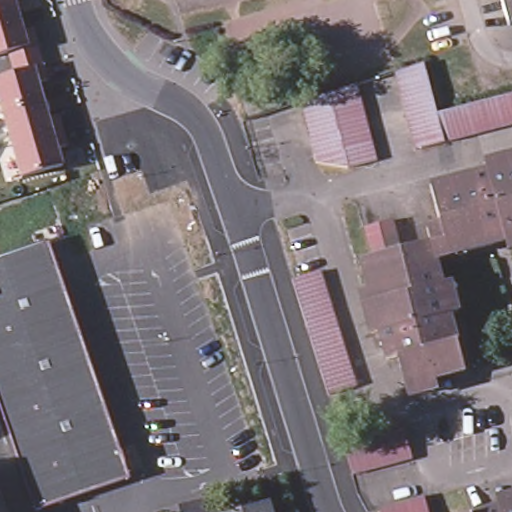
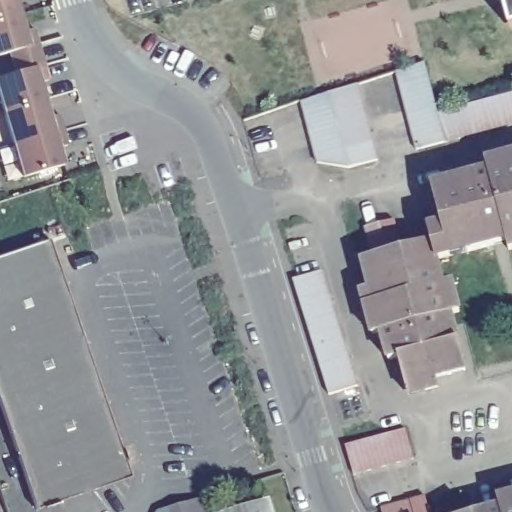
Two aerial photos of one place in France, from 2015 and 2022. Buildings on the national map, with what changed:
unchanged [(0,0),(21,0),(35,45),(0,57),(0,0)]
unchanged [(510,28),(503,0),(512,0),(512,28),(510,28)]
unchanged [(493,97),(507,94),(512,93),(512,124),(502,126),(487,130),(473,134),(458,138),(443,142),(415,150),(410,130),(405,114),(401,100),(397,86),(393,71),(422,62),(427,79),(431,93),(435,107),(436,113),(450,109),(465,106),(478,102),(493,97)]
unchanged [(0,108),(0,78),(41,66),(70,161),(22,179),(0,108)]
unchanged [(315,162),(311,148),(307,134),(304,120),(300,102),(326,93),(355,84),(358,102),(362,116),(366,131),(370,146),(373,161),(345,167),(315,162)]
unchanged [(455,312),(447,315),(450,327),(461,370),(403,385),(395,357),(385,360),(377,332),(370,333),(358,290),(366,288),(358,260),(369,257),(361,227),(375,224),(390,220),(397,250),(428,242),(424,228),(439,224),(428,185),(485,171),(482,163),(512,156),(512,249),(505,251),(501,242),(447,257),(432,260),(439,284),(447,282),(455,312)]
unchanged [(130,468),(65,491),(70,505),(50,512),(42,512),(0,394),(0,262),(53,244),(130,468)]
unchanged [(308,340),(303,326),(298,310),(295,296),(290,282),(319,272),(323,287),(328,301),(332,316),(337,330),(341,344),(346,358),(351,373),(355,387),(326,397),(322,382),(317,368),(313,355),(308,340)]
unchanged [(372,442),(386,437),(401,432),(411,461),(396,466),(381,471),(366,476),(351,481),(342,452),(357,447),(372,442)]
unchanged [(135,482),(70,505),(65,491),(130,468),(135,482)]
unchanged [(412,501),(426,497),(431,512),(373,512),(383,509),(397,505),(412,501)]
unchanged [(176,512),(173,506),(192,500),(196,512),(176,512)]
unchanged [(268,512),(244,512),(265,505),(268,512)]
unchanged [(493,512),(512,507),(512,512),(493,512)]

